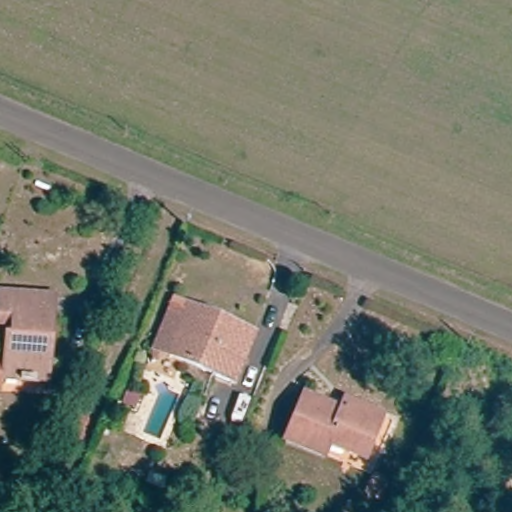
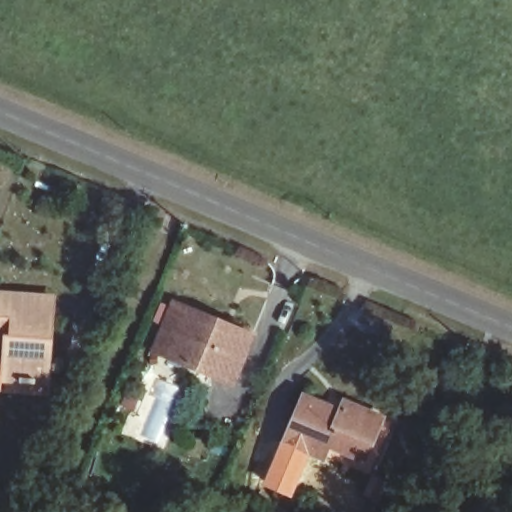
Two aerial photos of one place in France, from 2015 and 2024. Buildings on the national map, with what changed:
unchanged [(44,375),(34,375),(34,381),(5,381),(5,387),(0,387),(0,356),(4,357),(4,332),(10,332),(11,319),(0,319),(0,292),(54,293),(54,305),(53,335),(46,335),(44,375)]
unchanged [(230,384),(169,355),(157,349),(179,301),(192,308),(231,328),(252,338),(230,384)]
unchanged [(305,397),(340,413),(344,406),(377,422),(359,463),(326,450),(320,461),(284,444),(305,397)]

